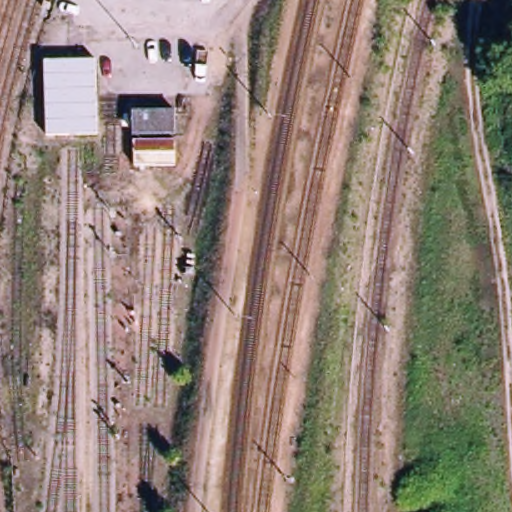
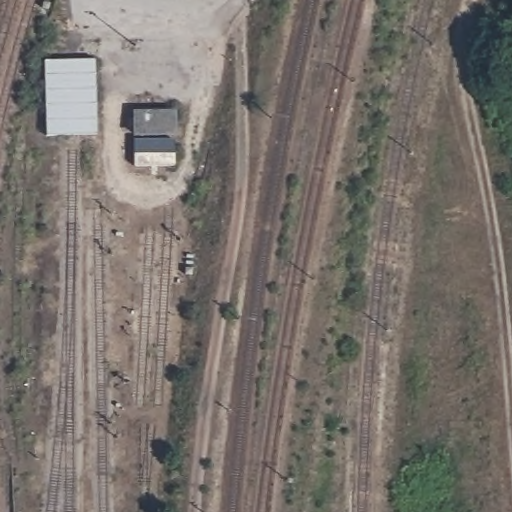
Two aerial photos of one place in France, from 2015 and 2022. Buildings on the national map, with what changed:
unchanged [(95,66),(96,140),(46,141),(44,67),(95,66)]
unchanged [(173,133),(131,134),(131,110),(172,111),(173,133)]
unchanged [(167,144),(168,169),(129,169),(128,144),(167,144)]

